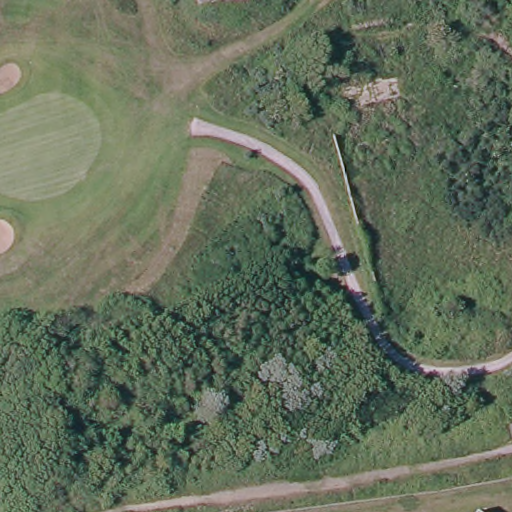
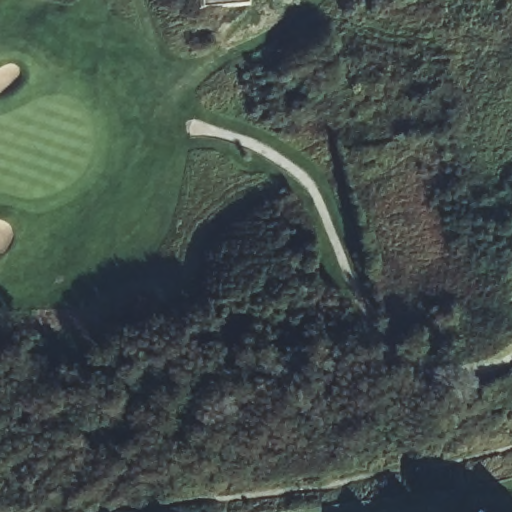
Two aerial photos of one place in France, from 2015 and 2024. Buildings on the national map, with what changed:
unchanged [(196,0),(242,0),(196,5),(196,0)]

